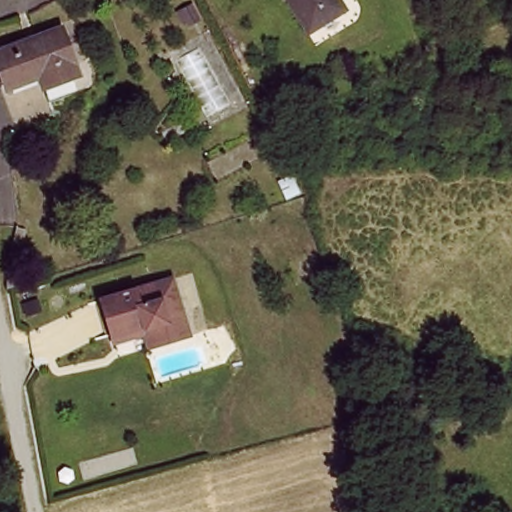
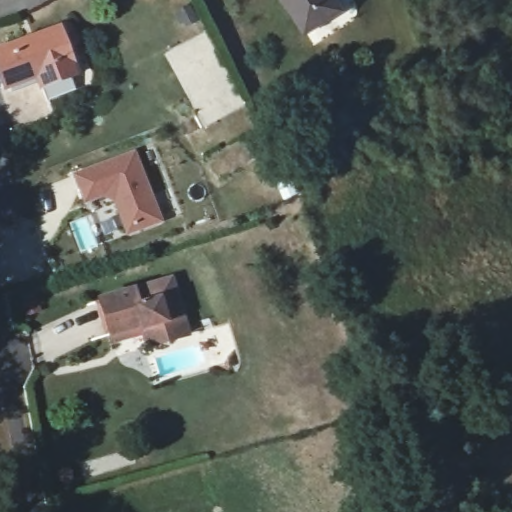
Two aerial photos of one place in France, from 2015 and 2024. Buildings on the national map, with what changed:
unchanged [(339,0),(346,11),(305,38),(281,0),(339,0)]
unchanged [(60,26),(80,80),(40,95),(36,81),(1,94),(0,90),(0,48),(60,26)]
new [(135,149),(163,221),(126,237),(113,203),(101,199),(84,204),(72,174),(135,149)]
unchanged [(169,275),(190,339),(153,351),(146,326),(110,337),(97,299),(169,275)]

